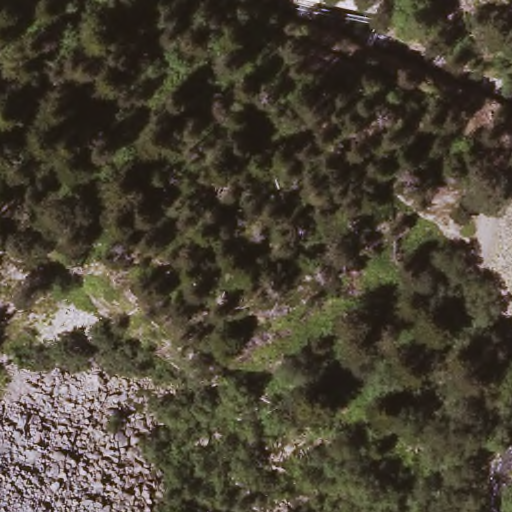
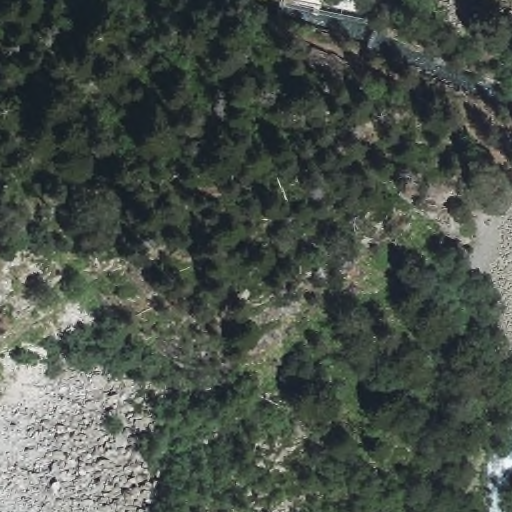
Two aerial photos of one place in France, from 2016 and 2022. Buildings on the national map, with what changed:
unchanged [(334,9),(299,0),(374,0),(370,17),(334,9)]

